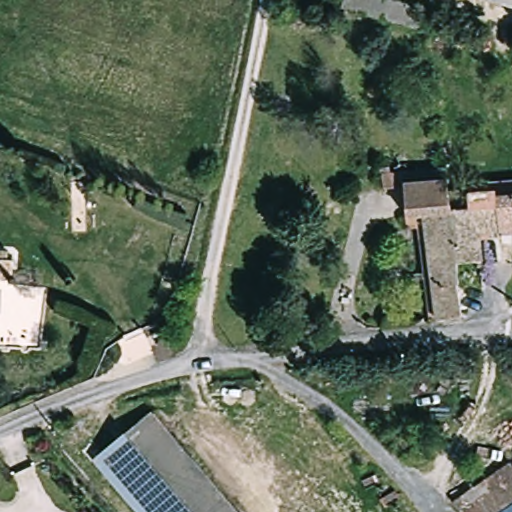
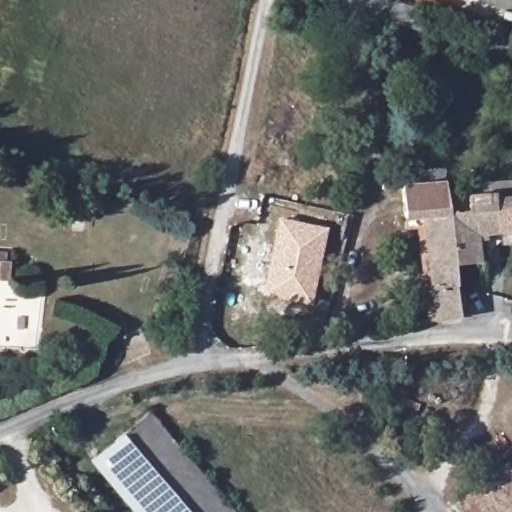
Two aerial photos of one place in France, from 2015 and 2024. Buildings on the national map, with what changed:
unchanged [(421,28),(340,5),(341,0),(395,0),(419,6),(421,28)]
unchanged [(483,0),(512,0),(512,8),(483,0)]
unchanged [(463,317),(438,320),(427,229),(409,230),(404,187),(383,188),(381,169),(387,168),(388,174),(419,171),(421,184),(445,181),(449,212),(456,264),(463,317)]
unchanged [(498,207),(497,200),(512,199),(512,230),(478,233),(481,262),(456,264),(449,212),(498,207)]
new [(328,226),(311,306),(263,293),(278,216),(328,226)]
unchanged [(0,263),(13,263),(11,282),(0,281),(0,263)]
unchanged [(139,512),(93,456),(146,411),(228,512),(139,512)]
unchanged [(401,449),(395,441),(403,435),(408,443),(401,449)]
unchanged [(452,512),(451,510),(456,507),(452,501),(483,480),(481,477),(510,458),(512,462),(512,512),(452,512)]

